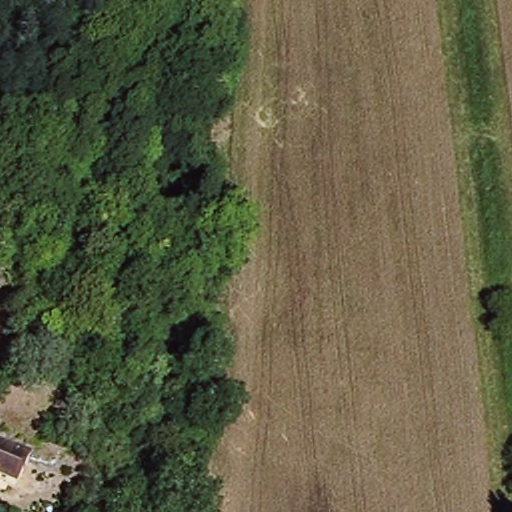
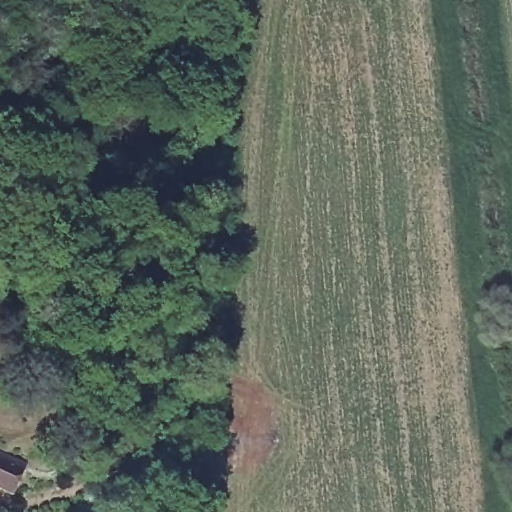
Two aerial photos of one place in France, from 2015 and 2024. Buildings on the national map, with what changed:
unchanged [(31,468),(20,494),(0,486),(0,456),(31,468)]

